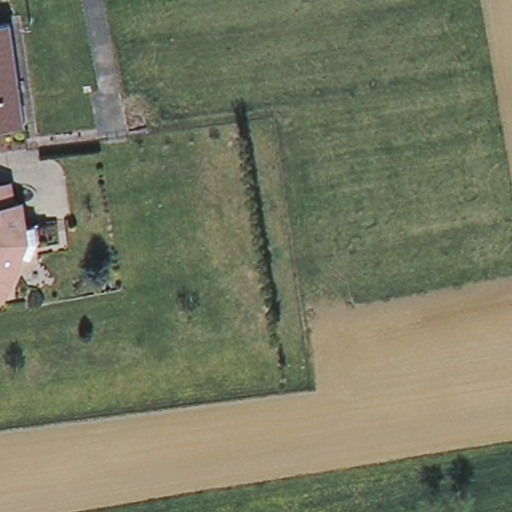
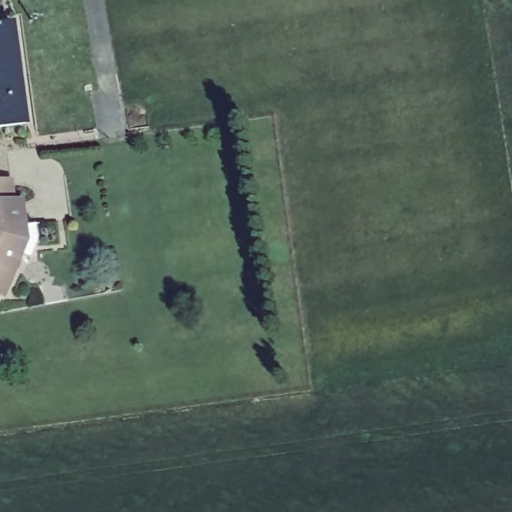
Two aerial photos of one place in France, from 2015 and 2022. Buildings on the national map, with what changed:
unchanged [(15,18),(30,120),(0,125),(0,20),(15,18)]
unchanged [(17,262),(3,291),(0,290),(0,179),(8,177),(10,199),(18,199),(22,234),(29,232),(35,232),(37,249),(34,256),(28,267),(17,262)]

